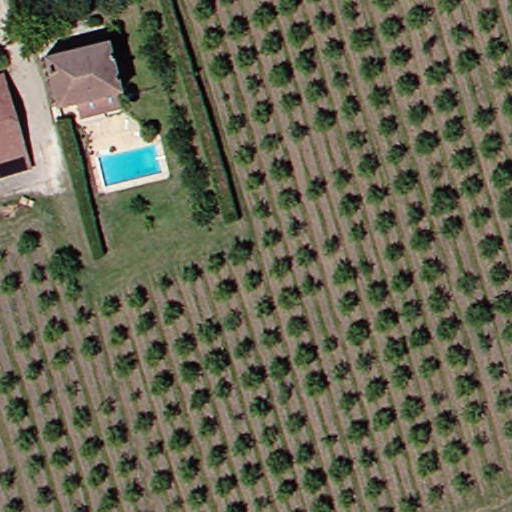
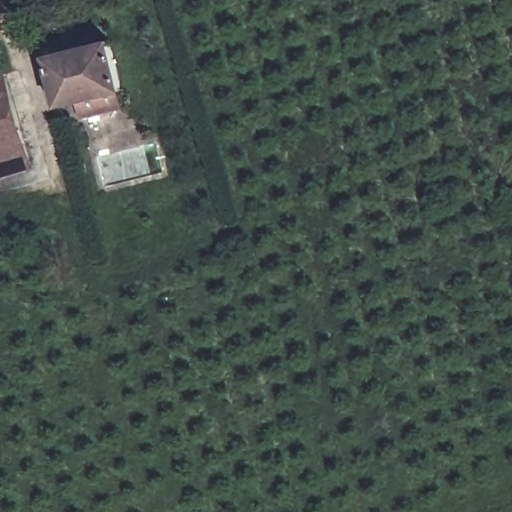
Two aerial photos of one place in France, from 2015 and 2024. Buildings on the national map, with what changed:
unchanged [(55,111),(43,61),(106,46),(119,95),(55,111)]
unchanged [(0,179),(0,88),(25,171),(0,179)]

